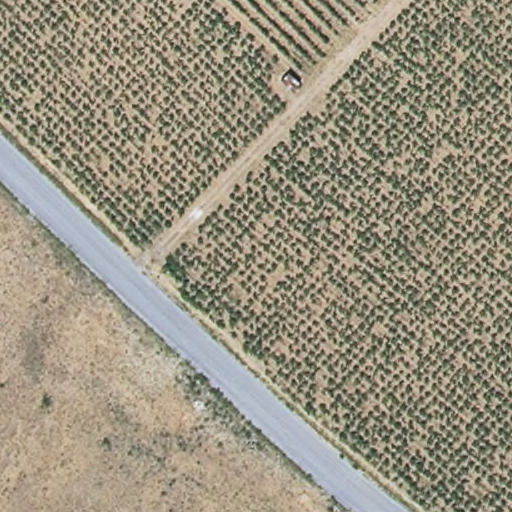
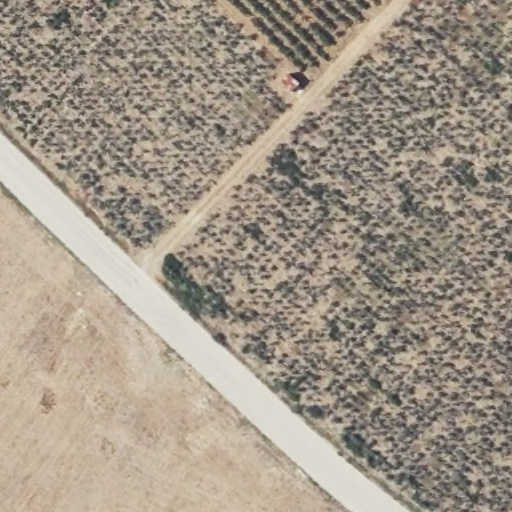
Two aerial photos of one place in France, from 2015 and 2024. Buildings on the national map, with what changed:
unchanged [(289,71),(299,81),(288,90),(280,79),(289,71)]

